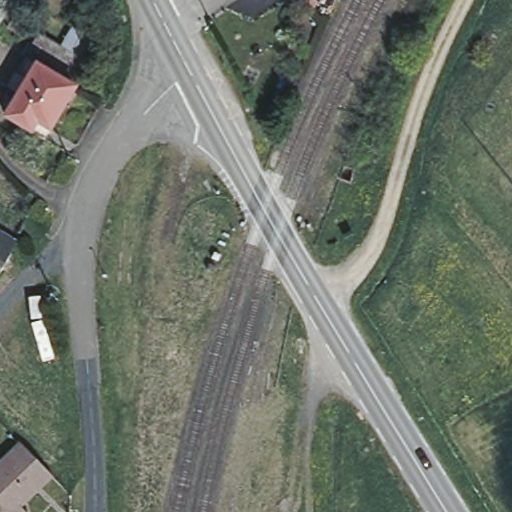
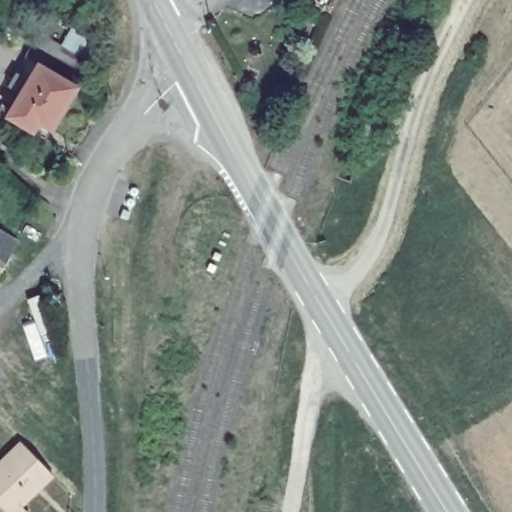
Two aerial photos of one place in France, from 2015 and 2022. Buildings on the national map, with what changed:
unchanged [(35,40),(81,66),(71,84),(25,57),(35,40)]
unchanged [(71,84),(75,86),(50,129),(37,121),(31,131),(6,116),(20,93),(9,87),(25,57),(71,84)]
unchanged [(22,241),(0,274),(0,227),(22,241)]
unchanged [(54,473),(41,486),(40,483),(20,502),(28,512),(8,512),(0,504),(0,462),(22,441),(54,473)]

